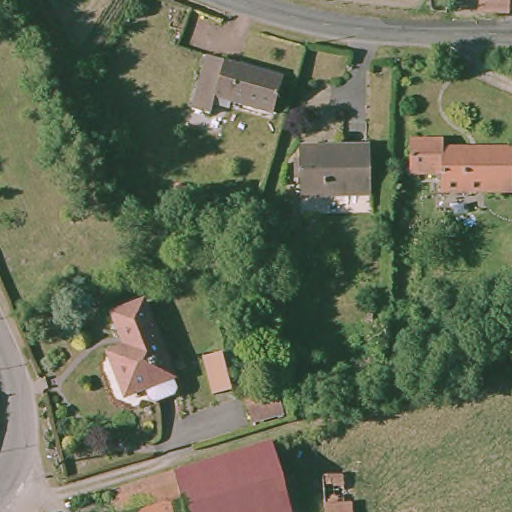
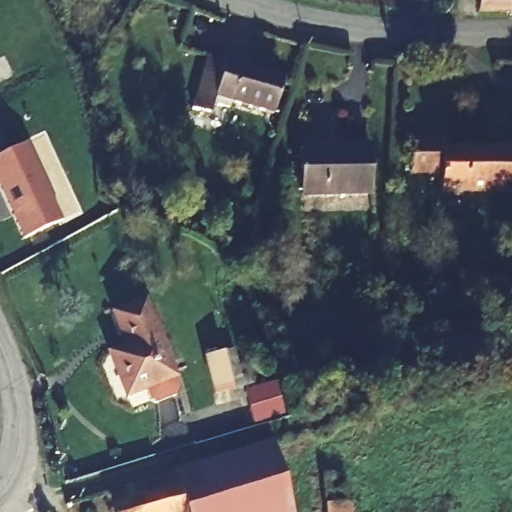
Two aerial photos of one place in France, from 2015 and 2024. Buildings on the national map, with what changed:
unchanged [(509,0),(509,12),(479,11),(480,0),(509,0)]
unchanged [(224,66),(284,83),(273,119),(231,107),(229,113),(213,108),(211,119),(193,113),(208,61),(224,66)]
unchanged [(443,135),(443,143),(512,144),(512,187),(441,186),(441,168),(410,168),(410,135),(443,135)]
new [(63,222),(23,240),(0,192),(0,157),(27,145),(63,222)]
unchanged [(300,149),(334,148),(371,148),(371,194),(301,195),(300,156),(300,149)]
unchanged [(176,391),(156,398),(150,396),(145,383),(126,390),(110,349),(127,342),(114,310),(143,298),(173,372),(178,385),(176,391)]
unchanged [(282,416),(251,425),(239,393),(274,380),(282,416)]
unchanged [(290,512),(184,512),(173,476),(272,447),(290,512)]
unchanged [(352,512),(325,512),(325,504),(324,476),(344,475),(345,503),(351,502),(352,512)]
unchanged [(184,512),(113,512),(108,496),(173,476),(184,512)]

